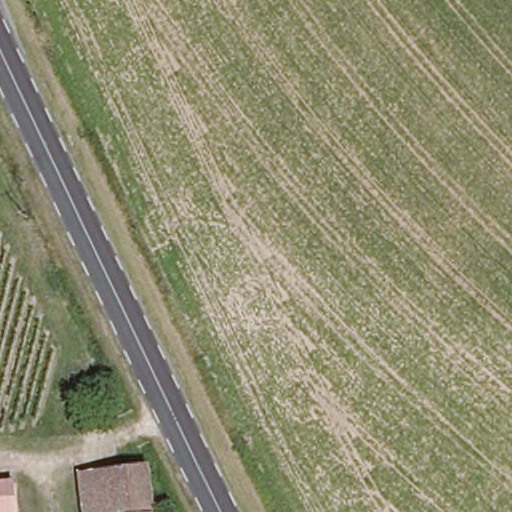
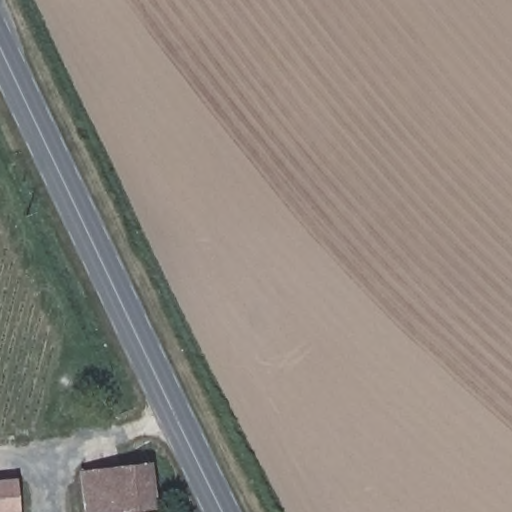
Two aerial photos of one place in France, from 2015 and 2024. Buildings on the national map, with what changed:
unchanged [(156,512),(92,512),(90,469),(151,465),(156,512)]
unchanged [(0,512),(0,481),(16,480),(18,510),(0,512)]
unchanged [(0,512),(18,510),(18,512),(0,512)]

